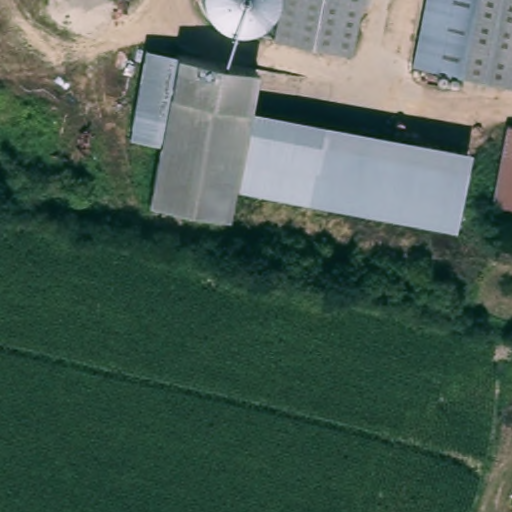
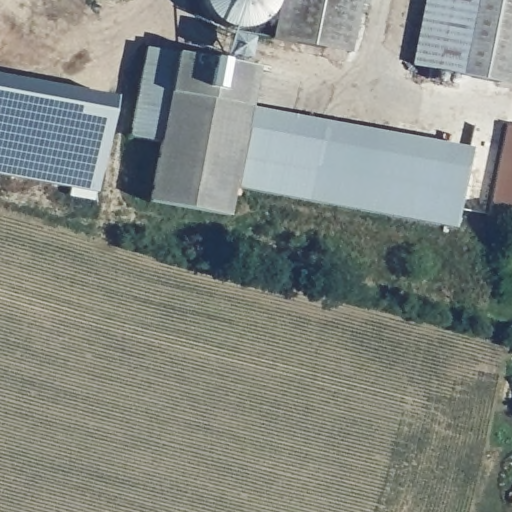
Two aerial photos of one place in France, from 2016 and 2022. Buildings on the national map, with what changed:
new [(274,6),(267,18),(257,25),(244,29),(229,29),(217,23),(207,14),(201,0),(276,0),(274,6)]
unchanged [(359,53),(279,39),(285,0),(367,0),(359,53)]
unchanged [(468,78),(468,80),(416,71),(426,0),(478,0),(468,78)]
unchanged [(468,80),(468,78),(478,0),(512,0),(512,89),(468,80)]
unchanged [(256,71),(249,112),(318,125),(316,147),(241,136),(233,195),(229,222),(144,208),(163,114),(132,108),(144,50),(256,71)]
new [(68,195),(69,187),(0,175),(0,77),(114,98),(94,200),(68,195)]
unchanged [(489,216),(496,173),(504,126),(512,127),(512,220),(498,218),(489,216)]
unchanged [(316,147),(468,171),(459,231),(234,195),(233,195),(241,136),(316,147)]

